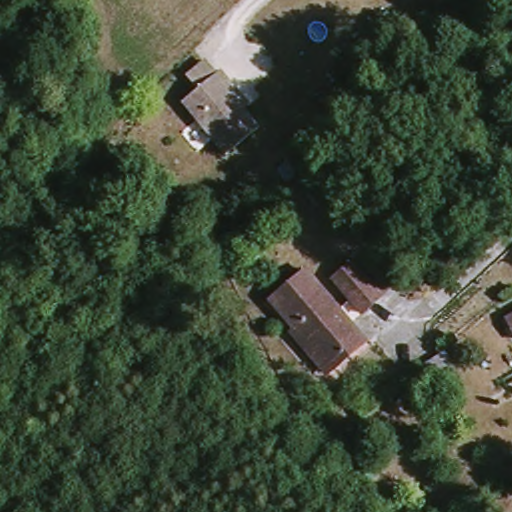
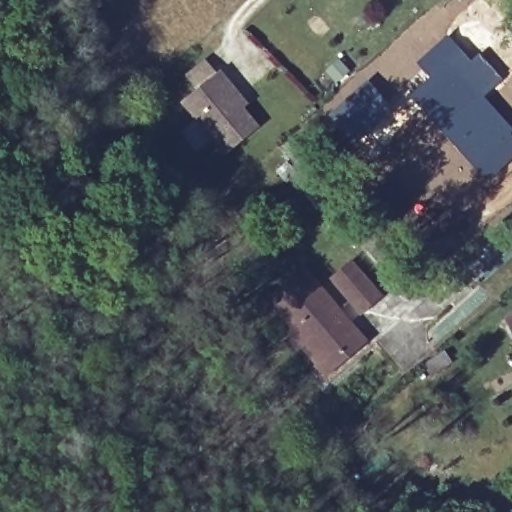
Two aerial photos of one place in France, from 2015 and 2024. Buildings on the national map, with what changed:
new [(428,79),(415,62),(448,33),(471,59),(479,52),(503,79),(485,96),(512,128),(512,130),(510,132),(512,135),(512,159),(487,182),(410,95),(428,79)]
unchanged [(224,153),(180,101),(218,69),(229,82),(247,103),(242,107),(257,126),(224,153)]
unchanged [(393,301),(375,317),(335,275),(353,257),(393,301)]
unchanged [(318,358),(270,303),(303,270),(356,327),(367,338),(348,355),(331,370),(318,358)]
unchanged [(510,318),(512,317),(512,323),(510,318)]

